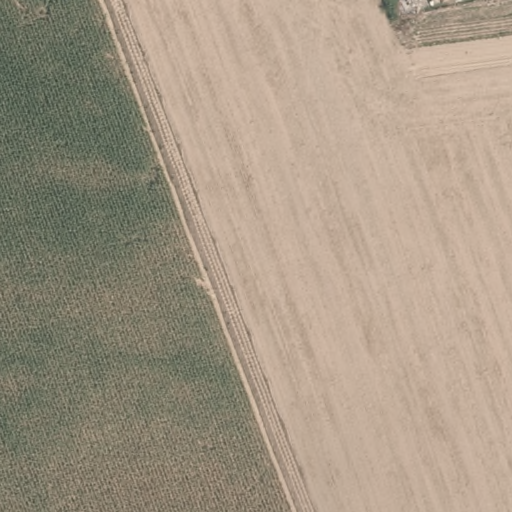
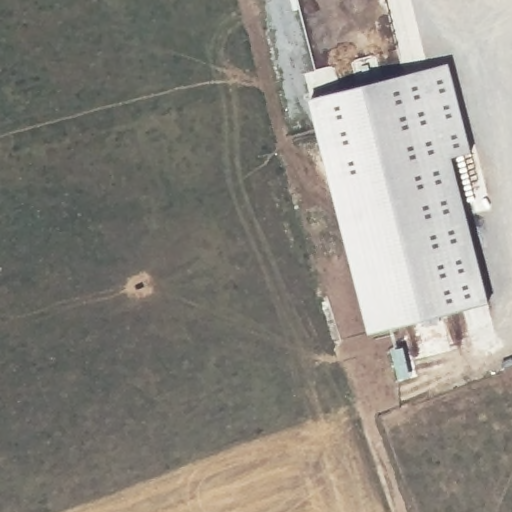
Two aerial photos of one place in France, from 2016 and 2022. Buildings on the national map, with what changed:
new [(368,332),(308,97),(451,62),(473,152),(454,158),(490,302),(368,332)]

